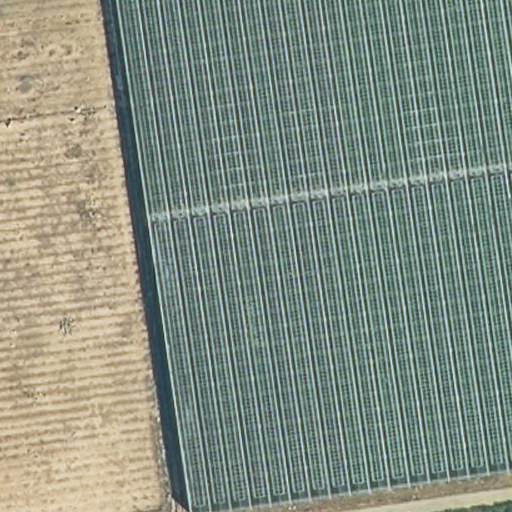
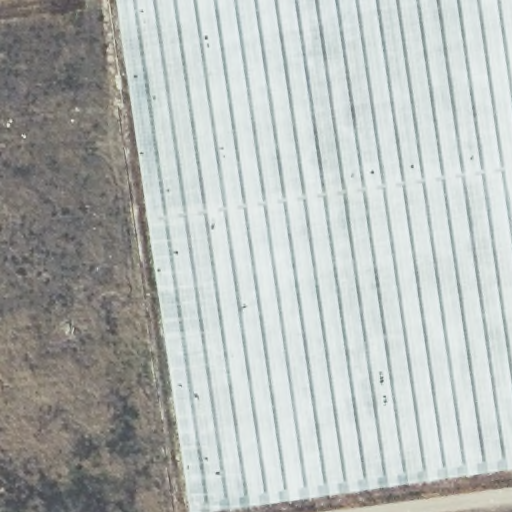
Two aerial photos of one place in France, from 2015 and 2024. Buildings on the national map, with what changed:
unchanged [(126,0),(512,0),(512,469),(202,512),(194,512),(126,0)]

